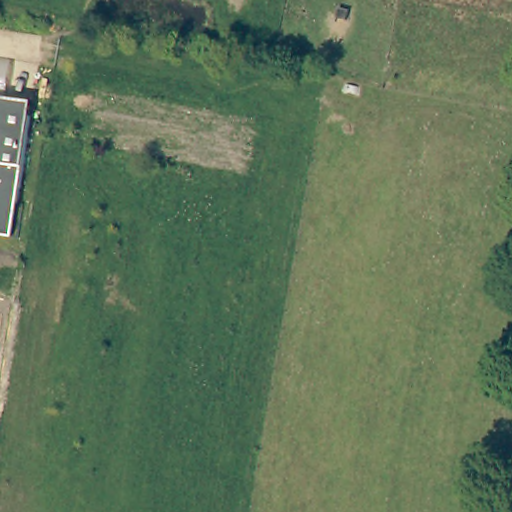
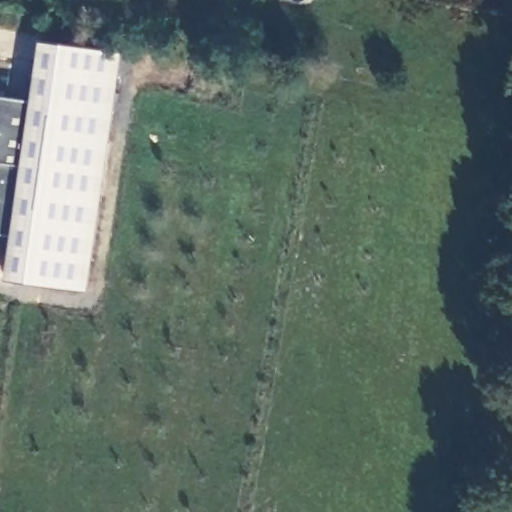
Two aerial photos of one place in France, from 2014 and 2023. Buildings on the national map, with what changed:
new [(5,279),(11,237),(28,115),(2,111),(3,96),(30,101),(39,41),(122,52),(87,290),(5,279)]
unchanged [(3,96),(2,111),(28,115),(11,237),(0,235),(0,95),(3,96)]
demolished [(96,97),(208,115),(202,160),(90,141),(96,97)]

